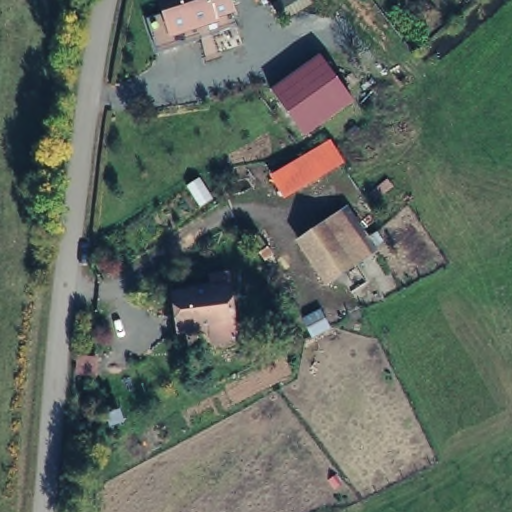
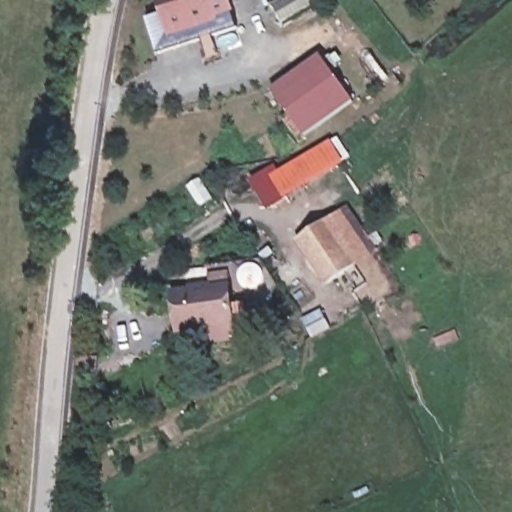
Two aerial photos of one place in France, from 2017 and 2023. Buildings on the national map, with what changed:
unchanged [(147,12),(165,6),(163,0),(232,0),(232,1),(238,17),(159,46),(147,12)]
unchanged [(271,90),(324,56),(353,103),(304,135),(271,90)]
unchanged [(342,163),(280,202),(264,178),(330,138),(342,163)]
unchanged [(361,267),(324,291),(298,249),(335,225),(361,267)]
unchanged [(231,284),(236,323),(181,332),(177,292),(231,284)]

